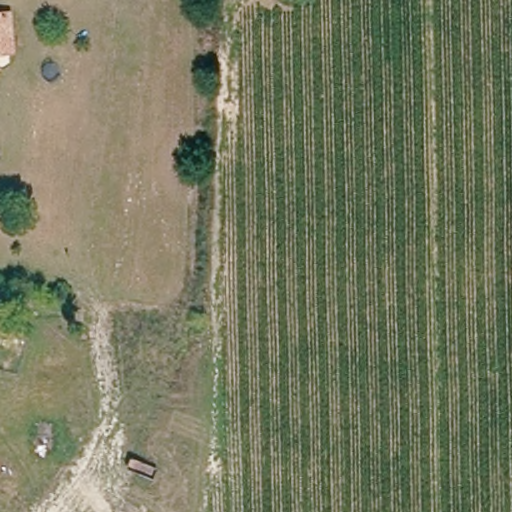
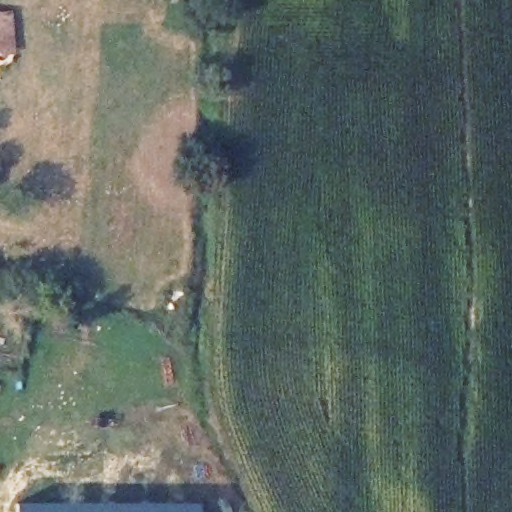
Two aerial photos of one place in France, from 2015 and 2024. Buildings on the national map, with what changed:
new [(199,502),(199,512),(19,512),(19,502),(199,502)]

